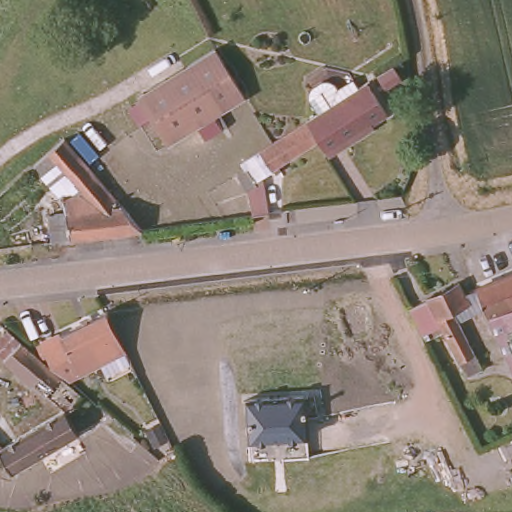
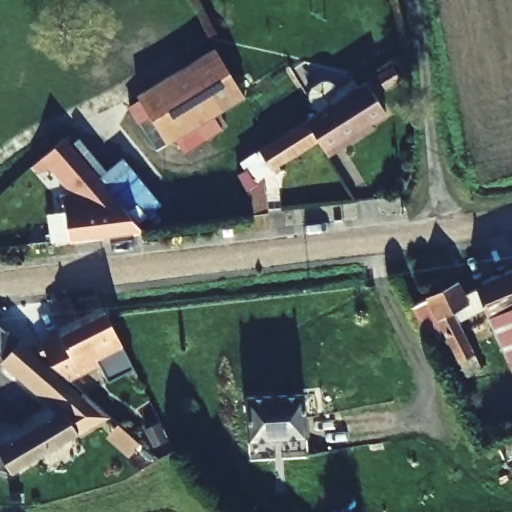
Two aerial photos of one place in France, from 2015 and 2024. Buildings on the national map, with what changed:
unchanged [(130,101),(207,50),(238,98),(163,148),(130,101)]
unchanged [(330,93),(324,82),(323,76),(327,70),(337,64),(343,63),(348,66),(352,71),(367,62),(371,68),(372,70),(392,100),(367,117),(368,120),(334,142),(325,128),(312,109),(333,96),(330,93)]
unchanged [(260,201),(257,186),(256,178),(253,173),(245,162),(241,156),(238,152),(249,145),(252,149),(267,139),(310,111),(312,109),(325,128),(322,129),(278,156),(279,157),(268,164),(276,204),(260,206),(260,201)]
unchanged [(50,213),(68,211),(67,195),(58,186),(72,178),(55,159),(48,165),(51,168),(44,174),(35,164),(49,151),(65,137),(139,224),(144,230),(70,239),(53,241),(50,213)]
unchanged [(508,368),(500,354),(492,333),(482,309),(472,288),(512,271),(512,378),(508,368)]
unchanged [(455,324),(482,370),(465,379),(437,326),(435,327),(420,336),(405,309),(420,301),(422,300),(455,282),(461,294),(472,288),(482,309),(455,324)]
unchanged [(35,343),(55,330),(60,336),(107,312),(127,351),(74,378),(35,343)]
unchanged [(68,404),(0,344),(15,327),(95,396),(87,404),(78,398),(72,406),(85,426),(17,465),(4,443),(0,446),(0,434),(5,440),(68,404)]
unchanged [(306,387),(312,431),(253,438),(248,393),(306,387)]

